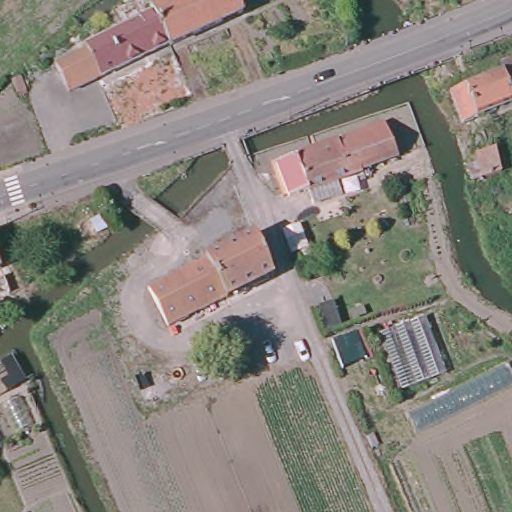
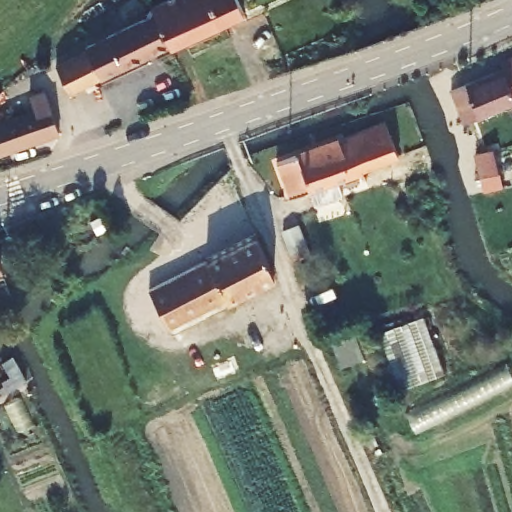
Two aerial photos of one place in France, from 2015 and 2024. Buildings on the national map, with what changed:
unchanged [(241,0),(248,15),(174,49),(173,48),(160,20),(157,14),(154,6),(167,0),(241,0)]
unchanged [(75,94),(62,65),(91,51),(90,46),(157,14),(160,20),(173,48),(75,94)]
unchanged [(452,90),(505,71),(502,63),(512,58),(512,103),(464,121),(452,90)]
new [(45,88),(62,134),(0,156),(0,118),(32,106),(29,93),(45,88)]
unchanged [(403,115),(415,149),(339,179),(345,193),(317,204),(311,189),(291,198),(277,164),(403,115)]
unchanged [(500,174),(482,178),(477,154),(495,151),(500,174)]
unchanged [(297,224),(307,248),(290,255),(281,232),(297,224)]
unchanged [(212,258),(210,255),(259,229),(278,274),(233,297),(232,294),(175,324),(180,335),(170,340),(145,292),(212,258)]
unchanged [(0,271),(0,266),(2,270),(0,271)]
unchanged [(15,309),(5,314),(0,300),(0,279),(4,278),(15,309)]
unchanged [(460,369),(387,396),(367,341),(437,314),(460,369)]

